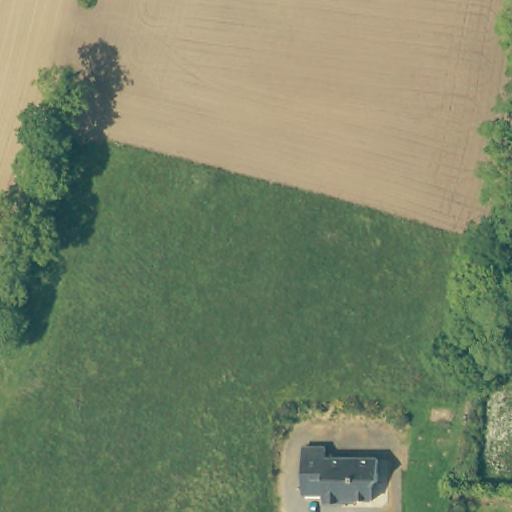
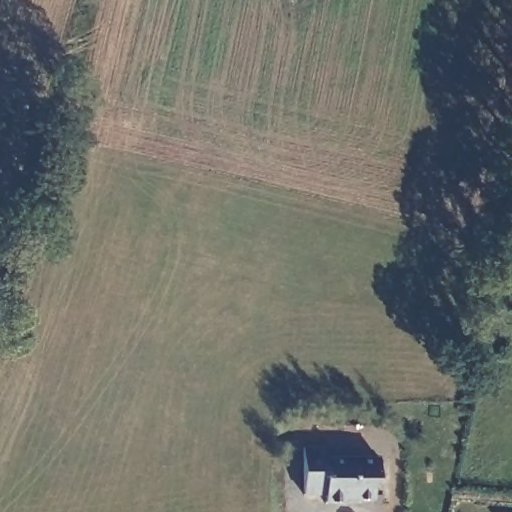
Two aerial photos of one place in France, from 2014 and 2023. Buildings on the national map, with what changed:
unchanged [(327,497),(305,497),(305,448),(328,449),(328,460),(381,461),(381,484),(374,490),(374,503),(349,503),(346,506),(326,506),(327,497)]

